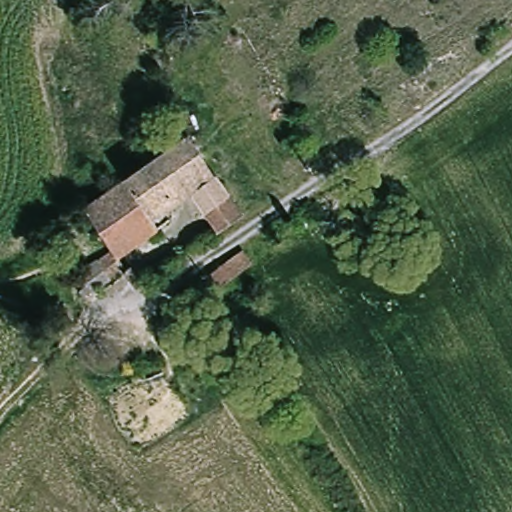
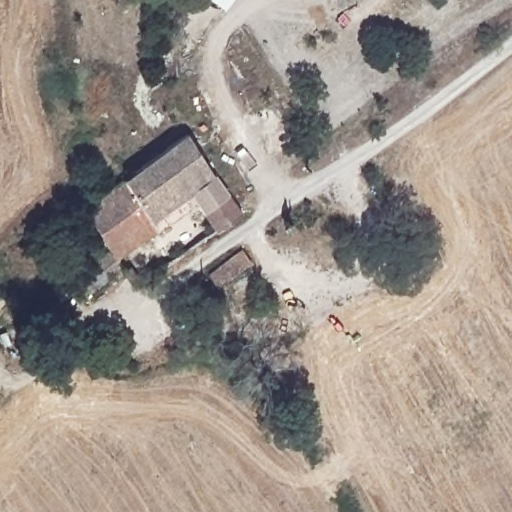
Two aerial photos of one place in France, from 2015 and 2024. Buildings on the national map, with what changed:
unchanged [(152,220),(118,173),(186,131),(243,208),(211,232),(183,197),(152,220)]
unchanged [(158,228),(122,257),(108,241),(79,200),(112,178),(118,173),(152,220),(158,228)]
unchanged [(73,271),(108,241),(122,257),(127,264),(89,293),(73,271)]
unchanged [(211,274),(243,248),(252,261),(220,286),(211,274)]

